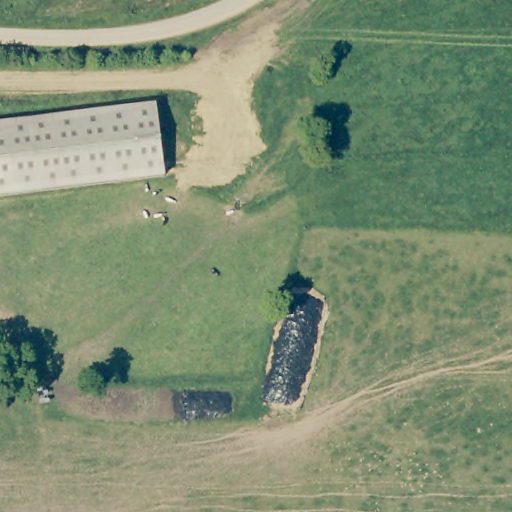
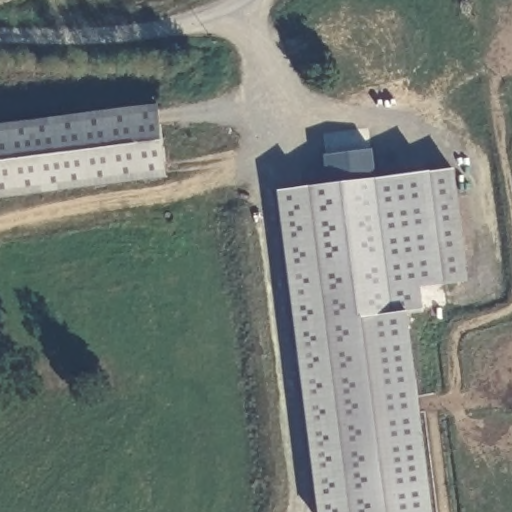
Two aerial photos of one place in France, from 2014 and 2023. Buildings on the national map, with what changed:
unchanged [(165,179),(0,198),(0,125),(156,105),(165,179)]
new [(468,282),(445,285),(420,287),(423,311),(407,313),(430,512),(316,512),(276,192),(327,185),(322,157),(370,151),(372,179),(430,172),(454,169),(468,282)]

